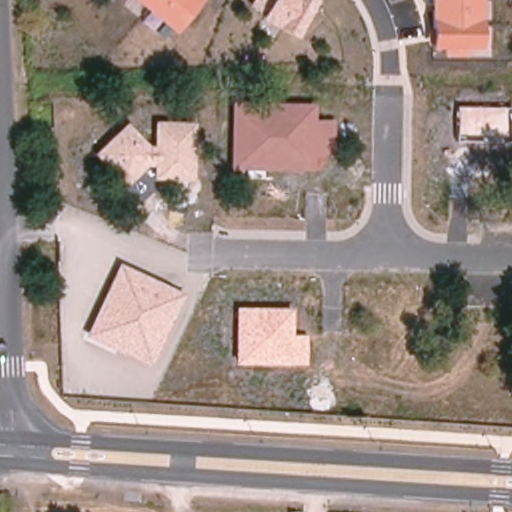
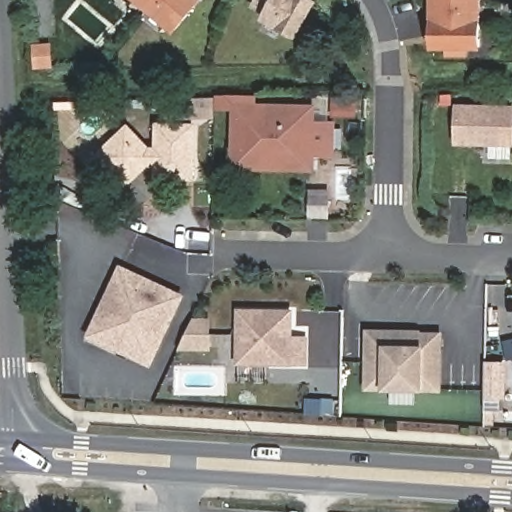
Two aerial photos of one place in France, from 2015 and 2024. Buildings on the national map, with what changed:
unchanged [(173,33),(134,0),(200,0),(173,33)]
unchanged [(297,37),(276,27),(261,19),(264,12),(250,6),(253,0),(318,0),(297,37)]
unchanged [(444,56),(444,49),(430,49),(430,0),(481,0),(482,48),(468,48),(468,56),(444,56)]
unchanged [(314,171),(231,170),(232,102),(315,104),(315,120),(334,120),(334,156),(315,157),(314,171)]
unchanged [(512,142),(457,140),(457,106),(512,107),(512,142)]
unchanged [(148,166),(126,186),(94,154),(127,122),(149,145),(154,145),(154,122),(195,121),(194,180),(154,179),(154,167),(148,166)]
unchanged [(151,366),(86,336),(119,262),(185,293),(151,366)]
unchanged [(308,334),(307,365),(236,364),(236,307),(293,308),(292,335),(308,334)]
new [(424,391),(384,390),(366,390),(367,328),(423,329),(423,331),(444,331),(443,391),(424,391)]
new [(507,398),(485,398),(486,360),(509,361),(507,398)]

